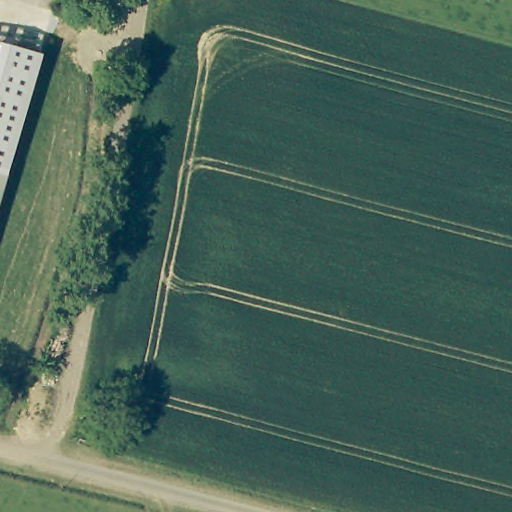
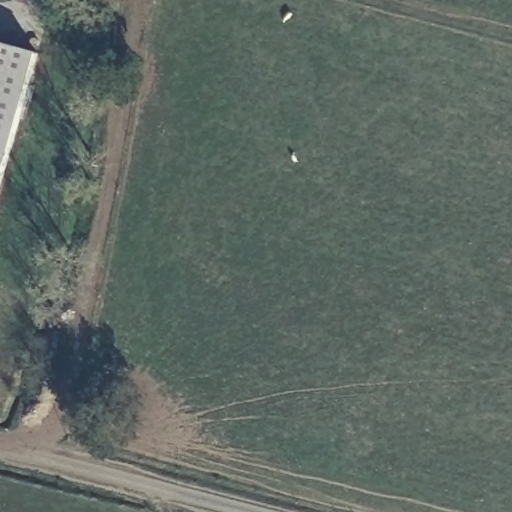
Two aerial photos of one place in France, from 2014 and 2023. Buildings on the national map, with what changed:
unchanged [(0,43),(40,54),(6,172),(0,171),(0,43)]
unchanged [(0,192),(0,171),(6,172),(0,192)]

